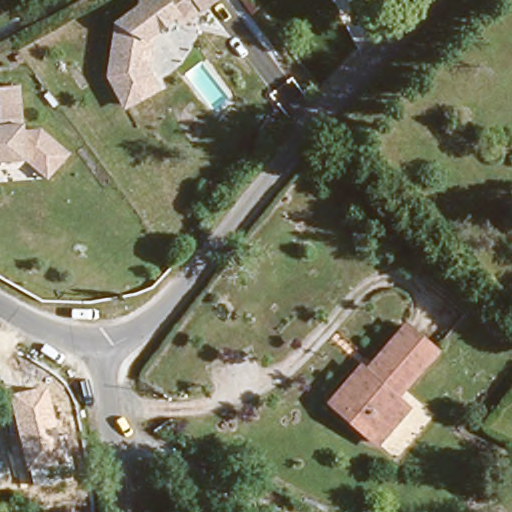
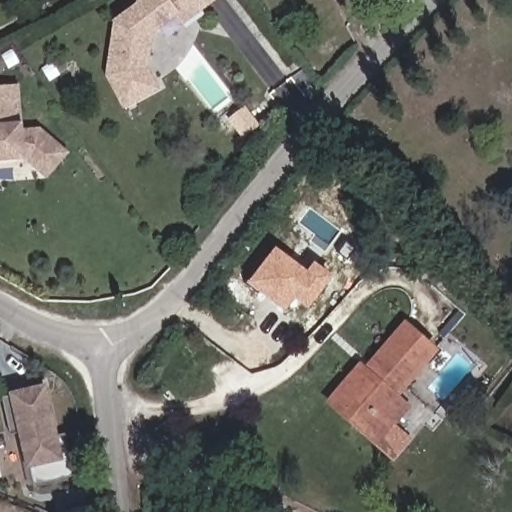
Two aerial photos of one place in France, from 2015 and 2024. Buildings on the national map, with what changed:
unchanged [(131,8),(132,1),(133,0),(206,0),(194,9),(180,20),(174,24),(173,23),(167,16),(143,34),(136,39),(136,43),(135,49),(140,56),(139,70),(150,89),(119,106),(103,77),(105,59),(110,27),(110,24),(131,8)]
unchanged [(345,26),(366,5),(378,21),(358,39),(345,26)]
unchanged [(20,119),(21,135),(39,134),(66,160),(51,177),(44,184),(28,170),(22,164),(0,165),(0,91),(20,90),(20,119)]
new [(306,271),(314,262),(333,278),(307,309),(295,300),(285,312),(248,283),(275,248),(306,271)]
unchanged [(409,405),(376,442),(327,401),(362,364),(367,368),(409,321),(438,347),(406,384),(396,394),(409,405)]
unchanged [(54,423),(57,423),(65,455),(73,453),(79,476),(31,486),(10,394),(46,387),(54,423)]

